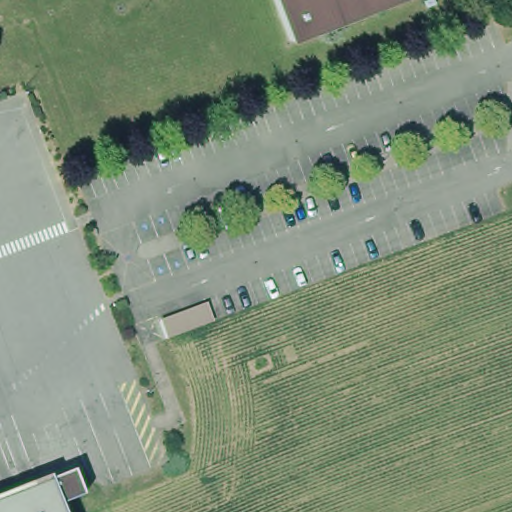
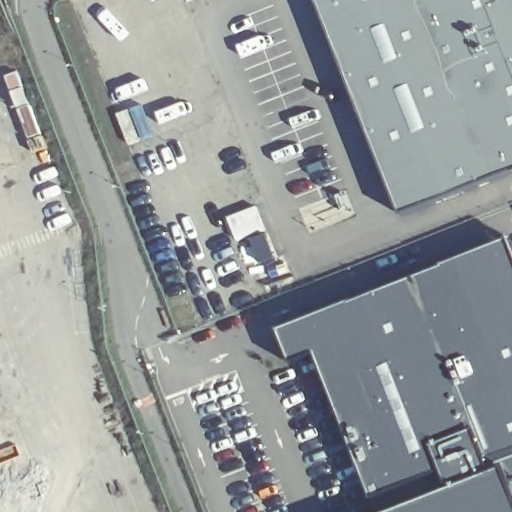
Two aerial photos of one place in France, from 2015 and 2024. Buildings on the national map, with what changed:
demolished [(288,37),(274,0),(387,0),(288,37)]
new [(403,217),(319,0),(512,0),(512,174),(403,217)]
new [(512,244),(512,512),(388,512),(327,351),(304,362),(291,332),(512,244)]
unchanged [(60,512),(0,512),(0,497),(47,479),(71,470),(80,496),(57,505),(60,512)]

